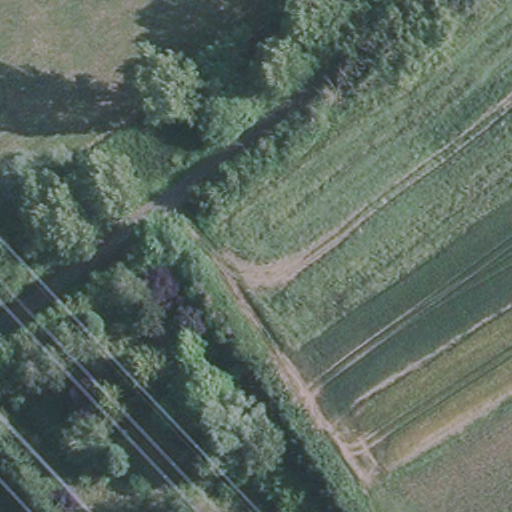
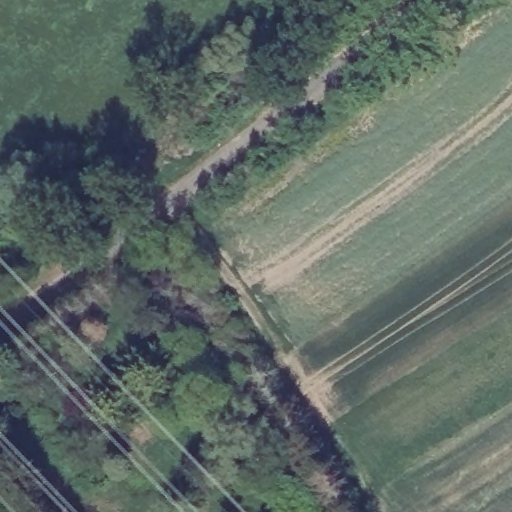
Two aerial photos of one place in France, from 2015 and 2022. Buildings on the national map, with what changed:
unchanged [(110,410),(102,398),(135,373),(164,413),(131,437),(121,425),(112,432),(101,417),(110,410)]
unchanged [(137,438),(130,463),(112,458),(119,433),(131,437),(137,438)]

